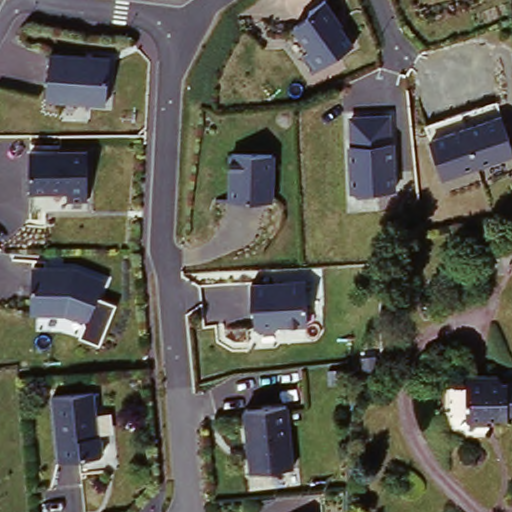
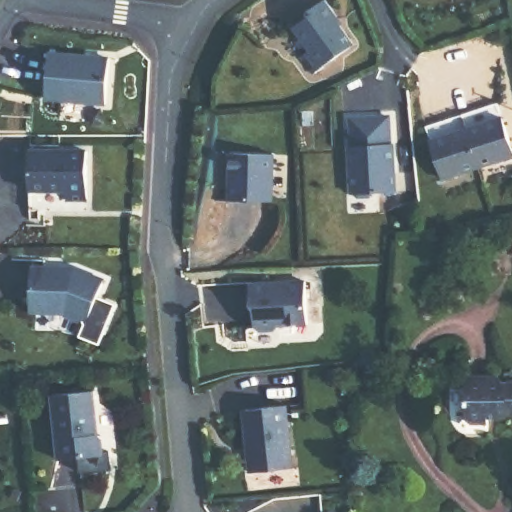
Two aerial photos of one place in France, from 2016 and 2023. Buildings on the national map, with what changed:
unchanged [(313,72),(302,53),(310,47),(296,23),(327,0),(329,0),(355,43),(313,72)]
unchanged [(111,54),(109,99),(52,95),(55,51),(111,54)]
unchanged [(395,114),(396,187),(353,189),(353,115),(395,114)]
unchanged [(504,116),(512,144),(512,155),(442,177),(430,138),(504,116)]
unchanged [(90,150),(89,191),(35,192),(36,147),(90,150)]
unchanged [(274,155),(271,196),(230,195),(233,151),(274,155)]
unchanged [(74,263),(105,278),(87,319),(68,310),(35,308),(37,263),(74,263)]
unchanged [(310,322),(255,326),(252,280),(303,278),(310,322)]
unchanged [(495,425),(472,425),(471,378),(503,377),(508,382),(512,382),(512,419),(501,419),(495,420),(495,425)]
unchanged [(95,389),(99,433),(102,436),(104,451),(106,469),(81,471),(80,456),(59,457),(53,392),(95,389)]
unchanged [(289,403),(297,470),(251,475),(242,411),(289,403)]

